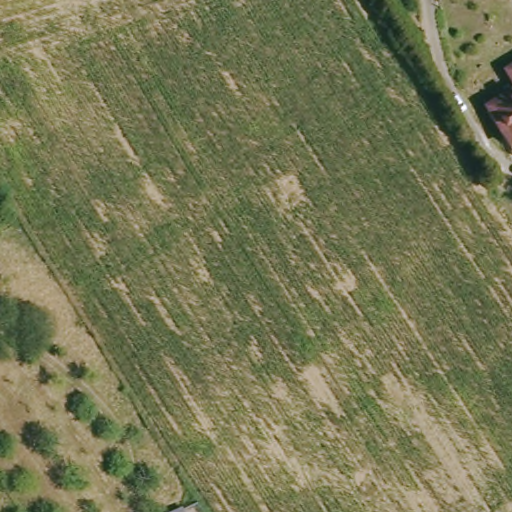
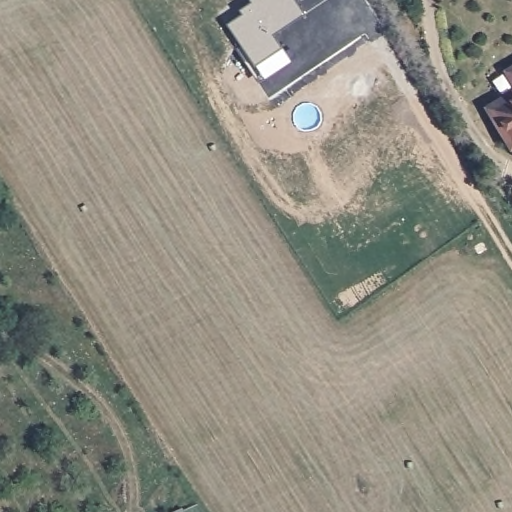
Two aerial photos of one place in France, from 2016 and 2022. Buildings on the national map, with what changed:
new [(252,67),(225,25),(240,15),(238,10),(250,3),(248,0),(295,0),(305,16),(272,36),(281,49),(252,67)]
unchanged [(512,62),(512,75),(506,66),(512,62)]
unchanged [(512,85),(512,136),(489,100),(512,85)]
unchanged [(162,512),(192,500),(197,512),(162,512)]

